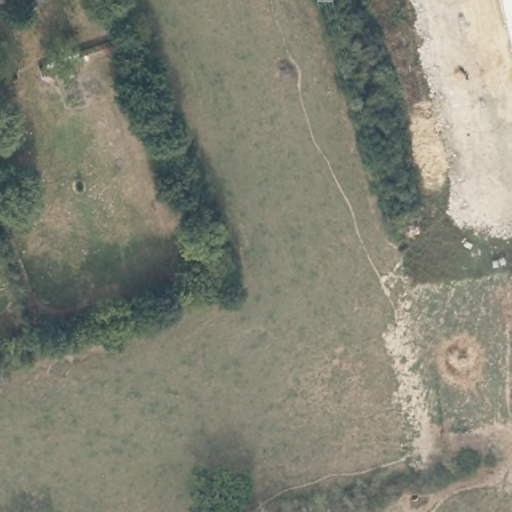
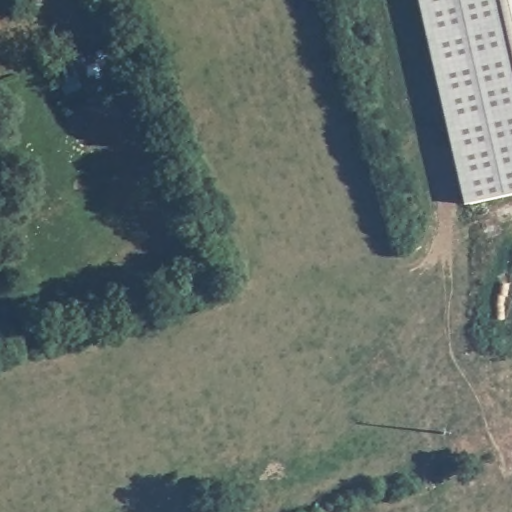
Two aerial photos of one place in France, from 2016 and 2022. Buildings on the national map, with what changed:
new [(417,0),(510,0),(512,7),(512,194),(464,205),(417,0)]
unchanged [(512,7),(510,0),(512,0),(512,7)]
unchanged [(51,314),(46,301),(72,292),(78,305),(51,314)]

